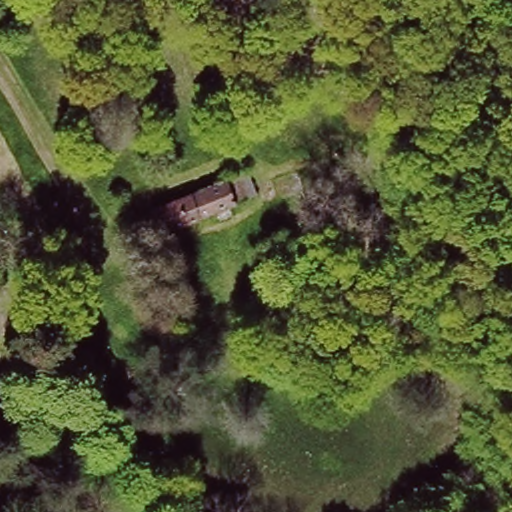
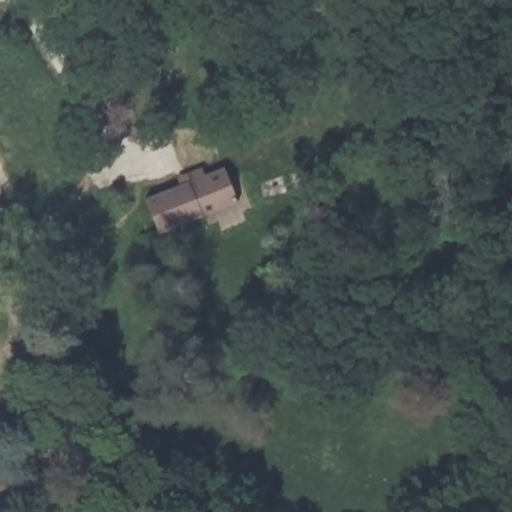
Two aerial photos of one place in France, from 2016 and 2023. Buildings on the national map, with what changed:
unchanged [(148,210),(188,192),(231,177),(250,170),(257,198),(237,203),(205,217),(158,238),(148,210)]

